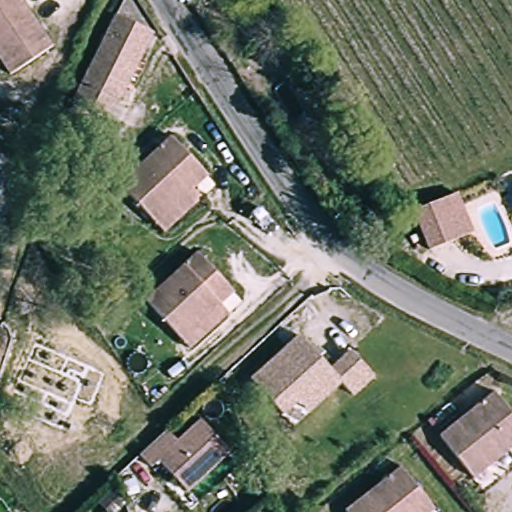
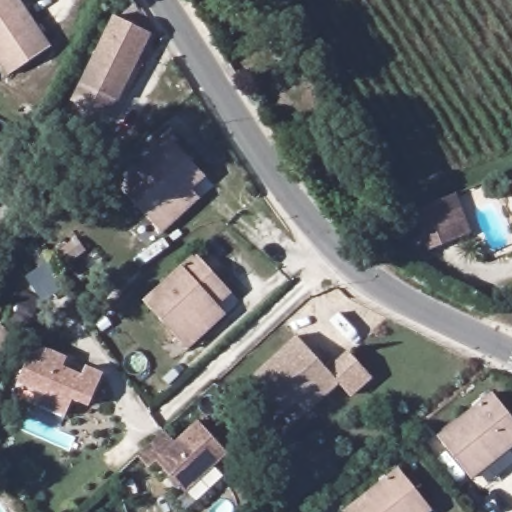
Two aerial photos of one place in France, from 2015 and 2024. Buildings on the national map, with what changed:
unchanged [(56,47),(18,70),(0,43),(0,0),(26,0),(56,47)]
unchanged [(130,86),(126,85),(117,104),(80,89),(113,7),(155,25),(130,86)]
unchanged [(166,234),(158,224),(156,226),(131,197),(121,185),(172,139),(181,132),(217,171),(206,181),(215,191),(166,234)]
unchanged [(435,201),(449,195),(464,236),(449,242),(422,252),(406,213),(435,201)]
unchanged [(185,342),(148,303),(207,250),(244,289),(233,299),(242,307),(193,352),(185,342)]
unchanged [(299,399),(280,415),(248,379),(298,334),(329,370),(351,350),(372,375),(352,393),(342,382),(326,396),(309,411),(299,399)]
new [(93,405),(74,400),(66,417),(39,406),(44,393),(18,381),(33,343),(66,356),(63,365),(82,374),(87,366),(104,373),(93,405)]
unchanged [(498,396),(512,413),(512,446),(472,478),(440,440),(498,396)]
unchanged [(185,490),(156,460),(148,466),(136,453),(162,428),(173,441),(197,419),(227,449),(185,490)]
unchanged [(432,504),(420,512),(351,512),(403,469),(432,504)]

